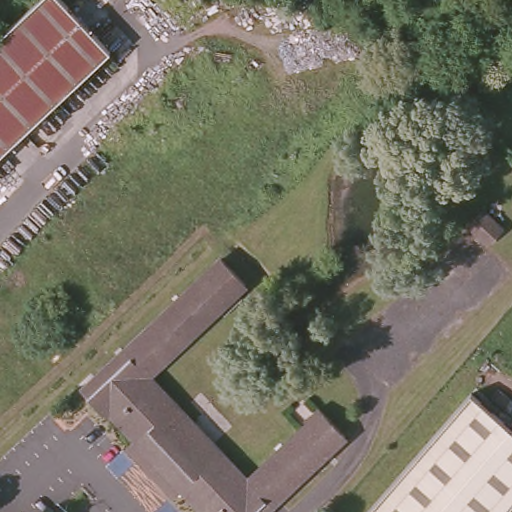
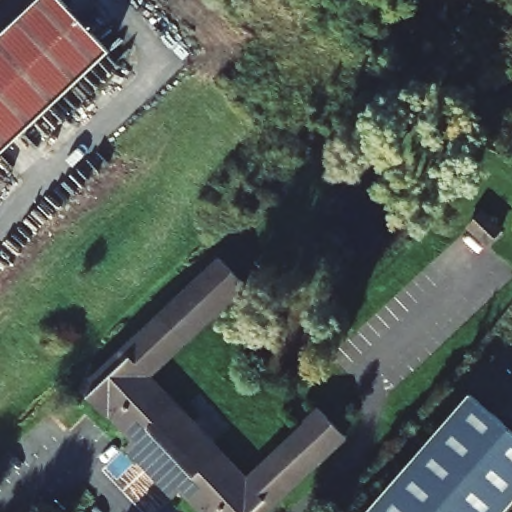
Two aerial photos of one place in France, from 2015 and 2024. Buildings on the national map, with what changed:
unchanged [(0,157),(0,38),(42,0),(59,0),(110,52),(0,157)]
unchanged [(242,480),(312,409),(343,438),(268,512),(188,512),(74,394),(212,260),(246,297),(150,381),(242,480)]
unchanged [(509,512),(364,512),(467,395),(512,436),(512,508),(509,512)]

